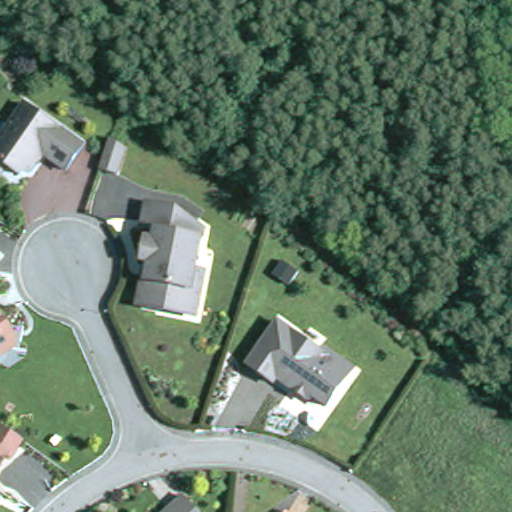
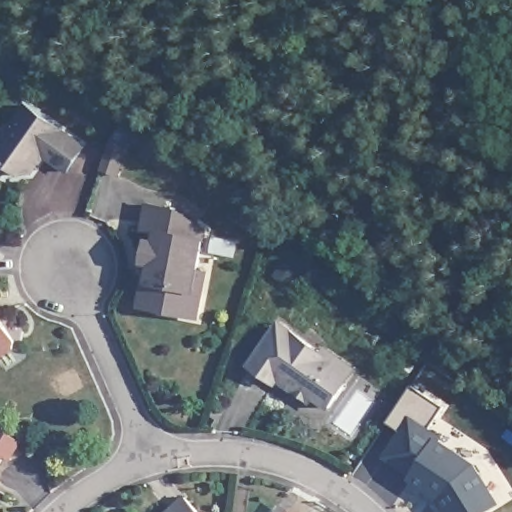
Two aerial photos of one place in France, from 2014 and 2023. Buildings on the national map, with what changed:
unchanged [(29,106),(88,148),(70,173),(46,157),(33,175),(22,177),(10,168),(3,177),(0,175),(0,148),(29,106)]
unchanged [(116,172),(99,167),(106,143),(108,141),(122,146),(124,147),(121,155),(116,172)]
unchanged [(178,311),(143,304),(138,296),(141,284),(147,279),(151,260),(143,259),(146,238),(154,240),(156,229),(142,226),(146,203),(176,208),(203,227),(194,269),(203,270),(199,289),(194,314),(178,311)]
unchanged [(17,339),(15,347),(1,356),(0,356),(0,314),(17,339)]
unchanged [(311,394),(308,399),(289,387),(293,382),(279,372),(273,381),(247,363),(264,337),(276,320),(281,324),(319,350),(323,346),(353,367),(343,381),(326,405),(311,394)]
new [(478,512),(453,512),(442,494),(413,476),(415,472),(386,454),(402,430),(387,420),(413,380),(446,401),(431,425),(442,432),(440,436),(455,446),(454,449),(473,462),(475,459),(491,487),(499,499),(480,511),(478,512)]
unchanged [(19,446),(9,461),(2,457),(0,460),(0,433),(19,446)]
unchanged [(200,512),(173,512),(188,498),(200,512)]

